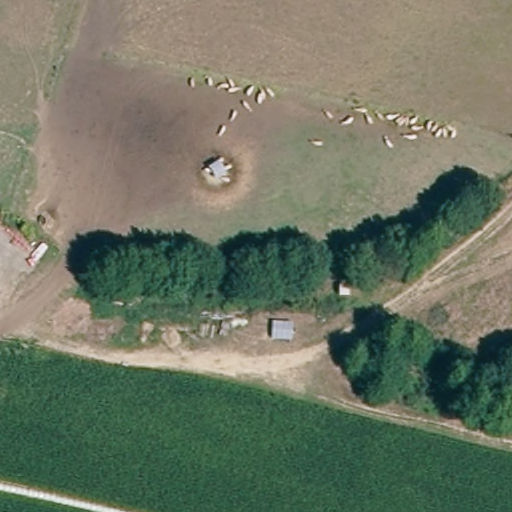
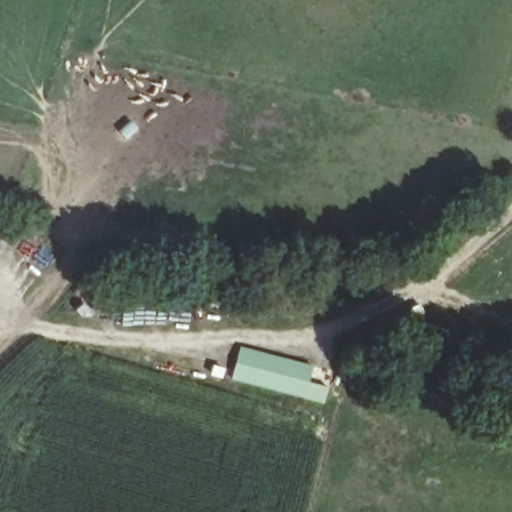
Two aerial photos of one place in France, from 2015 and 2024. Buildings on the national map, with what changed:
new [(328,387),(324,403),(234,380),(242,347),(313,365),(308,382),(328,387)]

